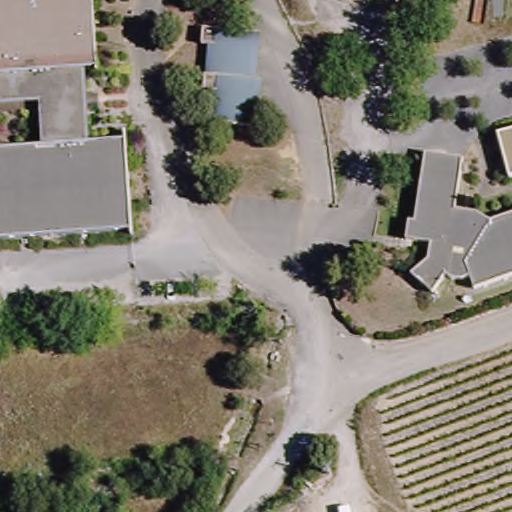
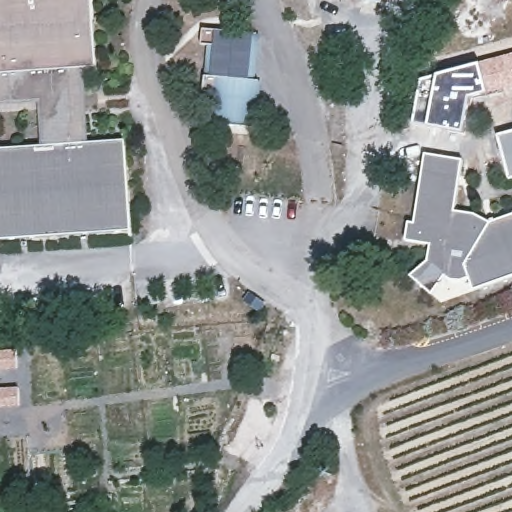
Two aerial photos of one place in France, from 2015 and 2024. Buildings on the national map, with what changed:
unchanged [(99,67),(89,68),(0,73),(0,0),(95,0),(99,67)]
unchanged [(382,10),(316,0),(383,0),(382,10)]
unchanged [(205,73),(212,75),(215,45),(199,42),(201,25),(250,30),(248,77),(255,80),(251,126),(224,122),(225,92),(209,89),(201,90),(205,80),(205,73)]
new [(512,88),(487,94),(480,61),(512,52),(512,88)]
new [(433,75),(480,61),(487,94),(471,97),(465,133),(427,126),(412,123),(419,78),(433,75)]
unchanged [(94,142),(42,145),(40,106),(0,109),(0,73),(89,68),(94,142)]
unchanged [(512,177),(507,178),(495,134),(512,130),(512,177)]
unchanged [(42,145),(94,142),(126,141),(135,234),(0,245),(0,147),(42,145)]
unchanged [(461,276),(447,287),(440,279),(424,294),(405,273),(432,247),(399,242),(401,226),(405,227),(417,154),(456,161),(449,211),(468,213),(482,223),(512,212),(512,272),(467,289),(461,276)]

